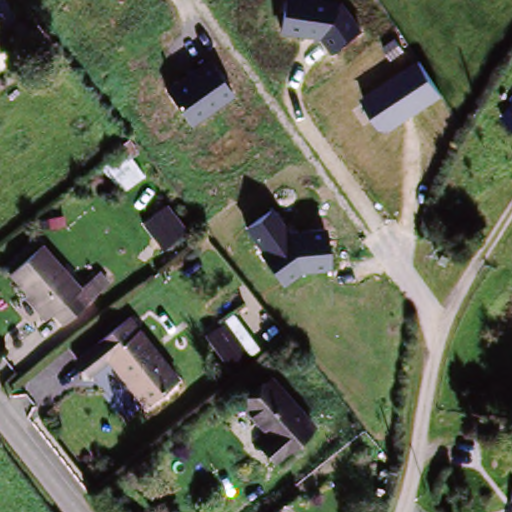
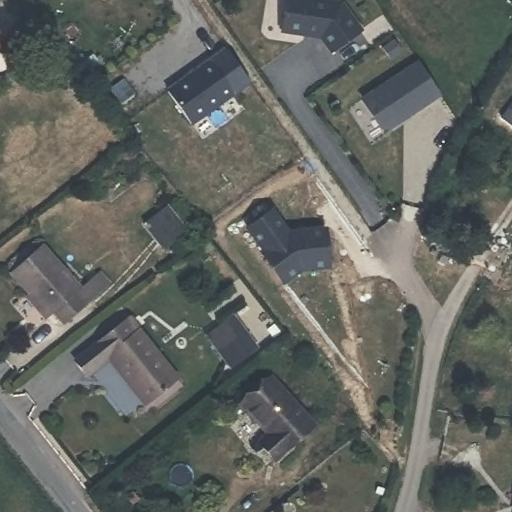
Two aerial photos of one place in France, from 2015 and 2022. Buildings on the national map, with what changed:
unchanged [(284,0),(332,0),(344,2),(364,32),(331,55),(319,42),(280,36),(284,0)]
unchanged [(11,34),(28,25),(40,40),(28,51),(11,34)]
unchanged [(166,91),(212,59),(236,96),(193,128),(166,91)]
unchanged [(418,61),(442,97),(394,131),(379,132),(359,98),(418,61)]
unchanged [(512,105),(512,131),(499,120),(512,105)]
unchanged [(274,209),(288,231),(326,227),(332,271),(301,273),(284,289),(246,228),(274,209)]
unchanged [(56,313),(46,321),(28,298),(31,295),(14,273),(47,246),(83,292),(91,285),(99,296),(64,324),(56,313)]
unchanged [(144,403),(108,356),(85,374),(73,359),(129,316),(177,378),(144,403)]
unchanged [(237,345),(225,355),(204,329),(216,319),(237,345)]
unchanged [(273,430),(246,400),(274,375),(316,422),(279,456),(263,438),(273,430)]

